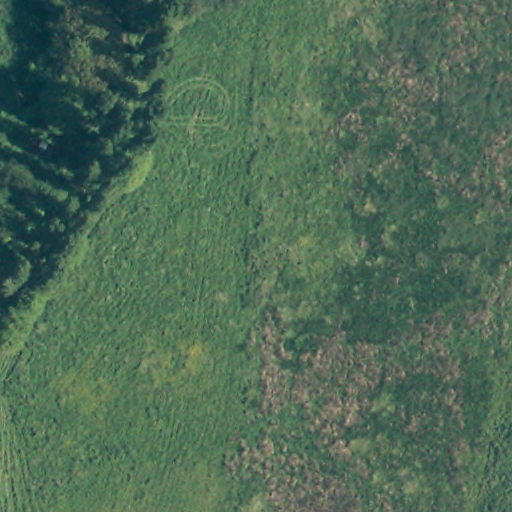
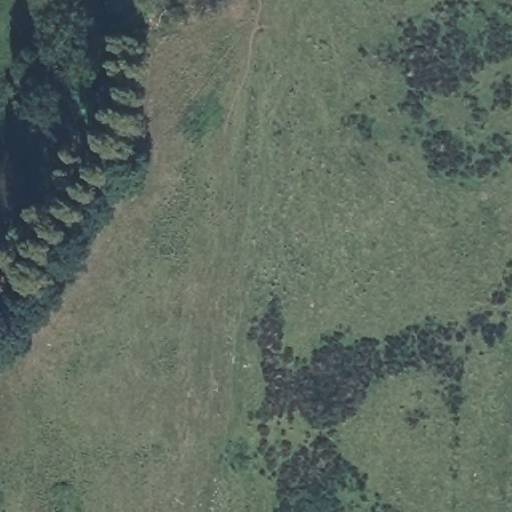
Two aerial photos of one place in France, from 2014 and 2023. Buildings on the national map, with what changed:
unchanged [(70,110),(19,128),(6,93),(58,76),(70,110)]

